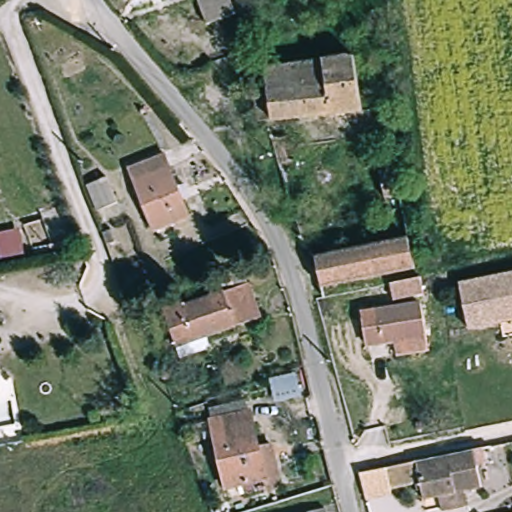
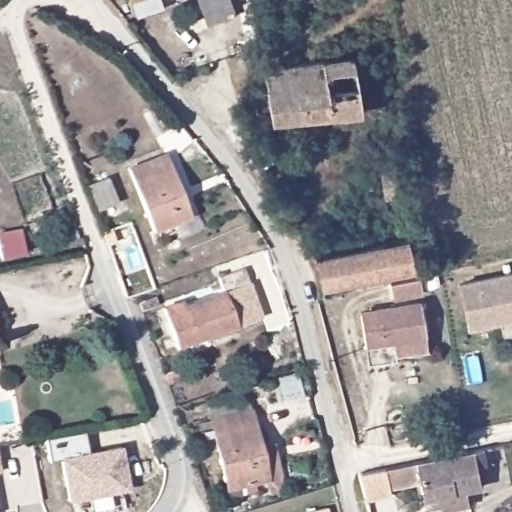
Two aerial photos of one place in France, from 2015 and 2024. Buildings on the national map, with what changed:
unchanged [(111,0),(145,0),(116,12),(111,0)]
unchanged [(212,26),(201,0),(234,0),(240,15),(212,26)]
unchanged [(249,102),(271,97),(263,64),(353,47),(364,107),(278,124),(256,127),(249,102)]
unchanged [(298,136),(307,162),(291,167),(283,141),(298,136)]
unchanged [(403,147),(418,144),(423,170),(408,174),(403,147)]
unchanged [(170,153),(194,219),(156,232),(133,167),(170,153)]
unchanged [(115,180),(123,202),(109,209),(103,211),(95,186),(100,185),(115,180)]
unchanged [(407,266),(318,285),(311,252),(400,232),(407,266)]
unchanged [(182,305),(223,290),(218,274),(244,265),(262,316),(176,347),(162,308),(181,302),(182,305)]
unchanged [(463,287),(512,276),(512,322),(472,331),(463,287)]
unchanged [(421,297),(391,303),(387,287),(417,280),(421,297)]
unchanged [(390,357),(387,342),(363,347),(357,316),(414,305),(419,336),(422,351),(390,357)]
unchanged [(319,392),(292,399),(287,378),(314,372),(319,392)]
unchanged [(272,490),(232,500),(214,426),(217,425),(213,412),(250,403),(254,417),(256,417),(272,490)]
new [(60,459),(51,462),(46,441),(83,433),(88,452),(122,447),(131,492),(69,503),(60,459)]
unchanged [(440,510),(437,497),(433,480),(403,487),(404,492),(374,500),(368,472),(477,448),(489,446),(498,482),(501,495),(440,510)]
new [(1,477),(0,477),(0,470),(1,477)]

